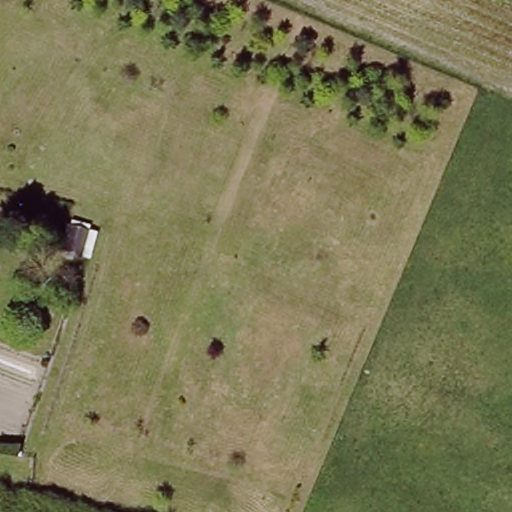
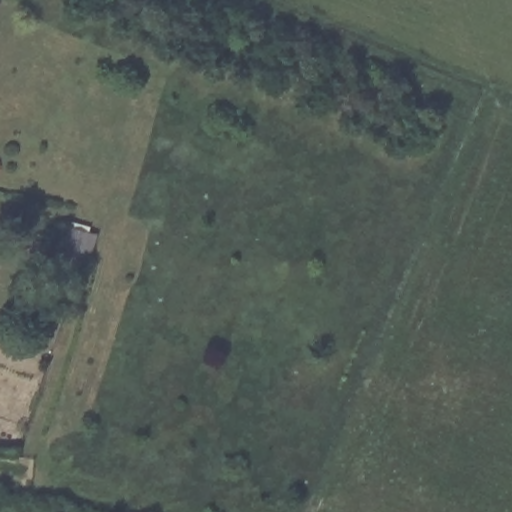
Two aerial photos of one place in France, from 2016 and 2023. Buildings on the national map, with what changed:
unchanged [(91,227),(87,252),(69,245),(71,224),(91,227)]

